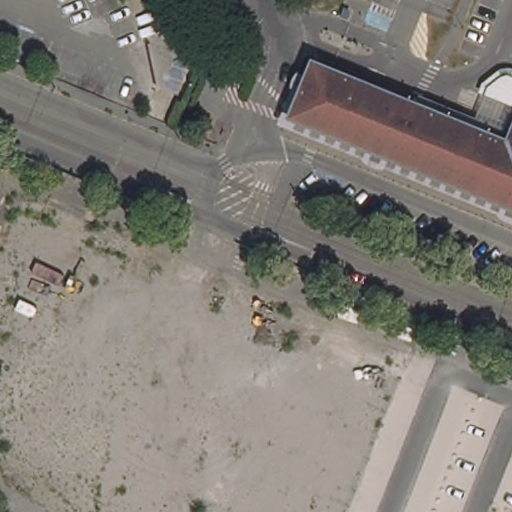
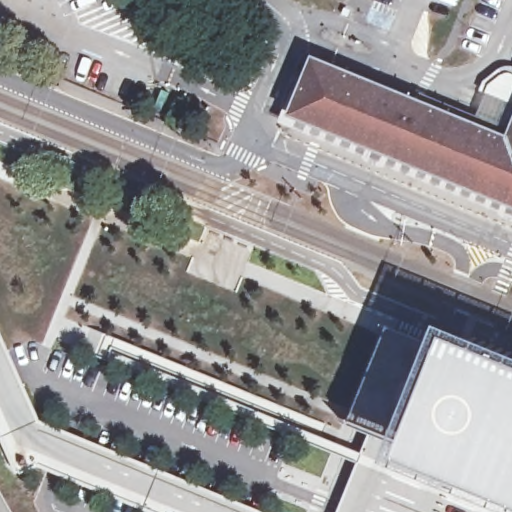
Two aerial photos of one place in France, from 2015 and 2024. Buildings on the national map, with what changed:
unchanged [(321,60),(512,138),(512,202),(298,115),(321,60)]
new [(453,340),(512,364),(512,504),(405,460),(412,447),(370,432),(351,425),(392,328),(448,355),(453,340)]
new [(405,460),(512,504),(512,512),(337,512),(370,432),(412,447),(405,460)]

